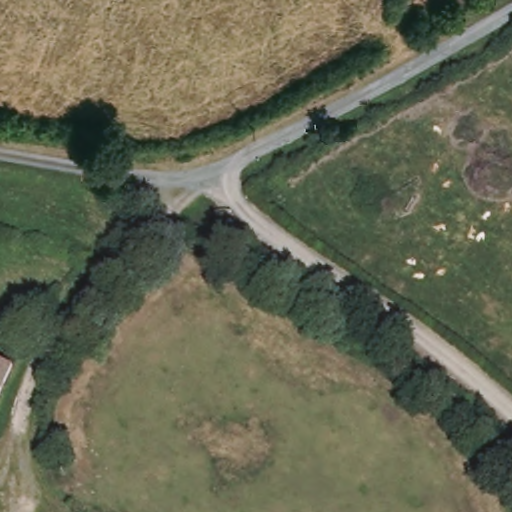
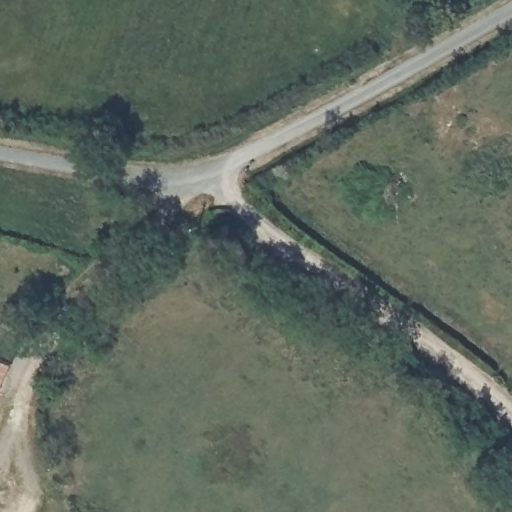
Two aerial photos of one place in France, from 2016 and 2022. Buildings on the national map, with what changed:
unchanged [(0,391),(0,360),(12,366),(0,391)]
unchanged [(107,512),(80,512),(100,500),(107,512)]

